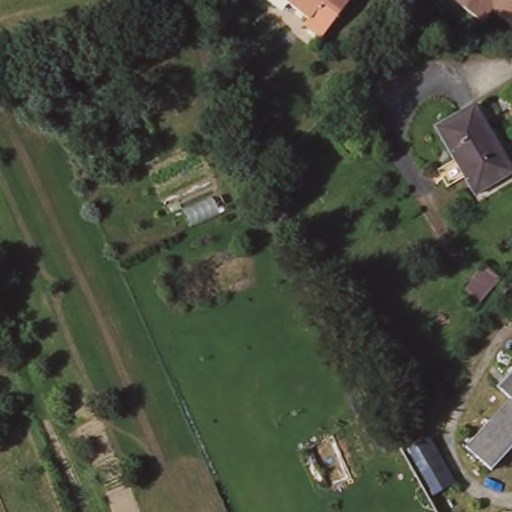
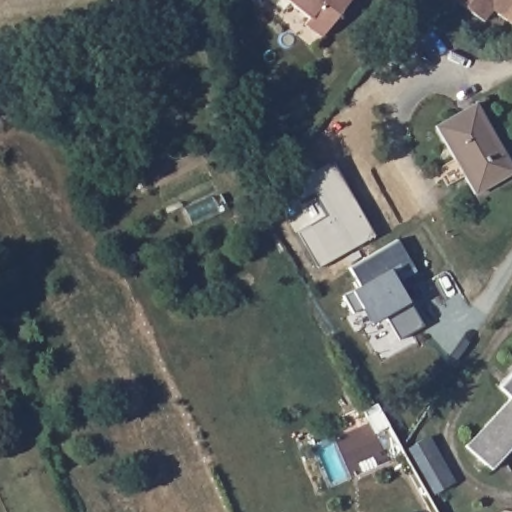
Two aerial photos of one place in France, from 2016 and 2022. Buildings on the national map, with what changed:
unchanged [(208,0),(228,0),(214,19),(208,0)]
unchanged [(304,25),(309,19),(284,0),(350,0),(322,38),(304,25)]
unchanged [(491,20),(461,0),(512,0),(512,13),(504,7),(491,20)]
unchanged [(512,169),(512,173),(476,194),(437,127),(475,105),(512,169)]
new [(374,236),(318,267),(299,231),(326,216),(313,194),(296,203),(286,182),(330,160),(374,236)]
new [(423,326),(398,340),(384,315),(370,323),(361,308),(353,313),(343,296),(359,286),(348,267),(397,240),(415,271),(397,281),(403,291),(408,301),(423,326)]
unchanged [(462,448),(506,400),(493,388),(512,367),(512,442),(486,470),(462,448)]
unchanged [(424,419),(428,442),(454,487),(429,502),(401,452),(424,419)]

